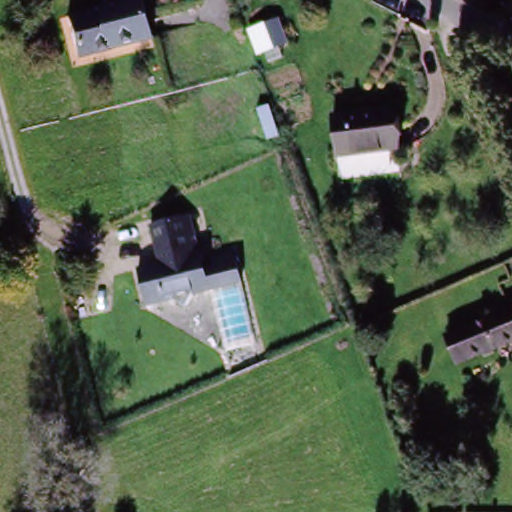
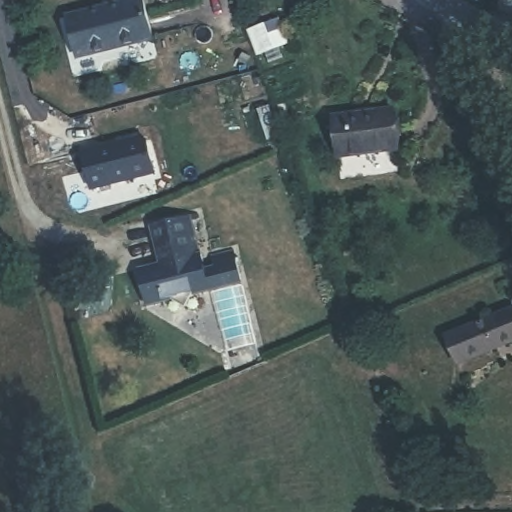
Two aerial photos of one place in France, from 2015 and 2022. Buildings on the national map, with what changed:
unchanged [(67,17),(134,0),(144,0),(158,39),(80,59),(67,17)]
unchanged [(279,21),(286,43),(256,52),(249,30),(279,21)]
unchanged [(405,148),(348,155),(342,111),(401,104),(405,148)]
new [(112,140),(113,142),(122,139),(122,137),(136,134),(142,137),(150,170),(87,186),(77,149),(112,140)]
unchanged [(207,296),(190,300),(185,311),(172,305),(146,310),(137,276),(162,268),(161,261),(157,261),(151,237),(149,230),(187,221),(187,224),(194,257),(197,256),(202,275),(210,272),(207,263),(230,257),(237,287),(217,293),(207,296)]
unchanged [(465,365),(452,336),(512,311),(512,346),(465,365)]

